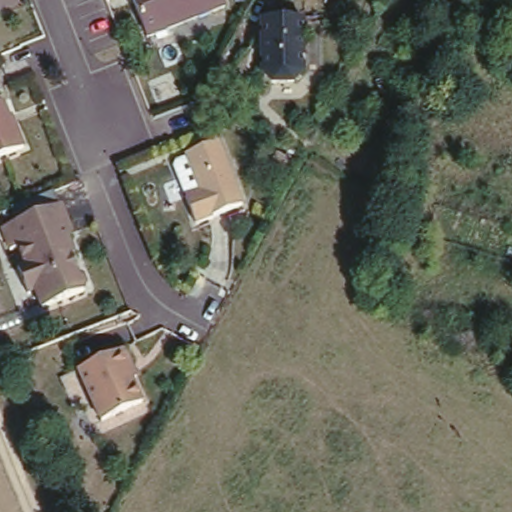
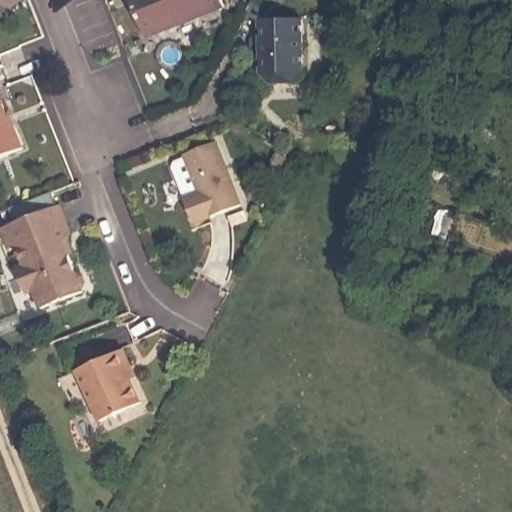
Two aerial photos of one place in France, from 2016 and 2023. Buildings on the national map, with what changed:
unchanged [(146,43),(129,0),(220,0),(224,12),(146,43)]
unchanged [(303,67),(293,77),(271,78),(261,68),(261,14),(302,14),(303,67)]
unchanged [(16,132),(19,131),(28,153),(0,165),(0,111),(7,108),(16,132)]
unchanged [(242,210),(195,229),(185,202),(200,197),(186,160),(217,147),(242,210)]
unchanged [(71,229),(67,234),(73,249),(68,250),(76,268),(82,271),(85,278),(83,285),(84,287),(41,303),(34,285),(27,288),(17,263),(24,259),(17,241),(9,244),(4,230),(1,223),(13,219),(60,200),(71,229)]
unchanged [(106,426),(82,376),(128,355),(135,372),(140,382),(136,384),(147,408),(106,426)]

